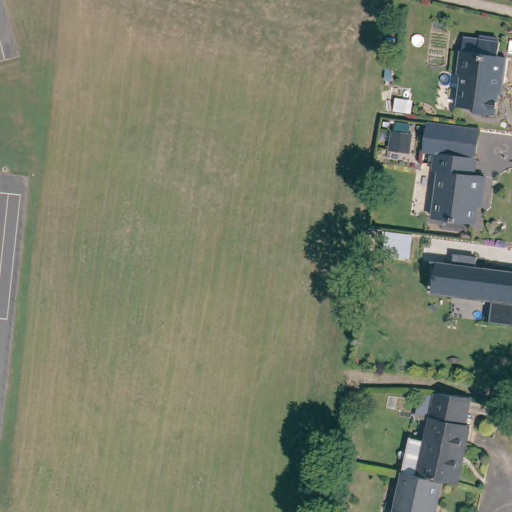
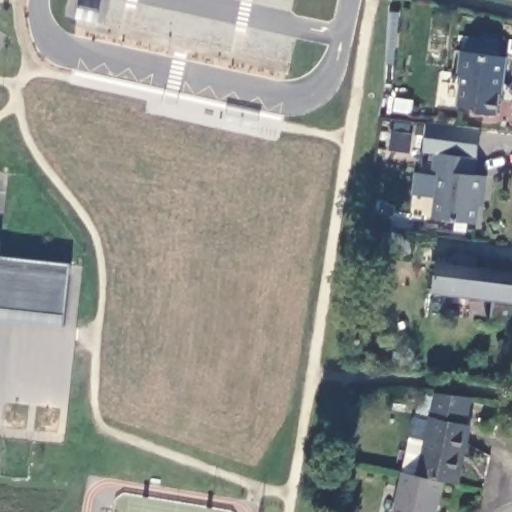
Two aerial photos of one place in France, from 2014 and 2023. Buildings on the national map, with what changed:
unchanged [(498,61),(505,61),(502,88),(493,87),(490,112),(476,111),(468,105),(458,102),(455,102),(457,77),(452,72),(456,50),(477,51),(478,42),(500,45),(498,61)]
unchanged [(439,170),(433,169),(435,151),(423,150),(426,122),(436,124),(479,129),(473,174),(485,175),(483,194),(479,193),(475,222),(433,216),(439,170)]
new [(1,242),(0,253),(0,242),(1,242)]
unchanged [(438,251),(454,254),(455,244),(478,247),(477,257),(512,262),(512,315),(490,312),(492,292),(433,284),(435,279),(438,251)]
new [(70,265),(65,318),(0,311),(0,257),(70,265)]
unchanged [(443,478),(420,474),(439,392),(476,396),(461,482),(443,478)]
unchanged [(420,474),(443,478),(436,512),(399,512),(407,471),(420,474)]

